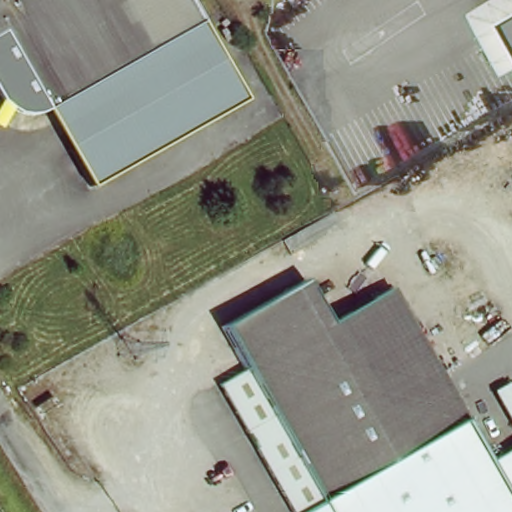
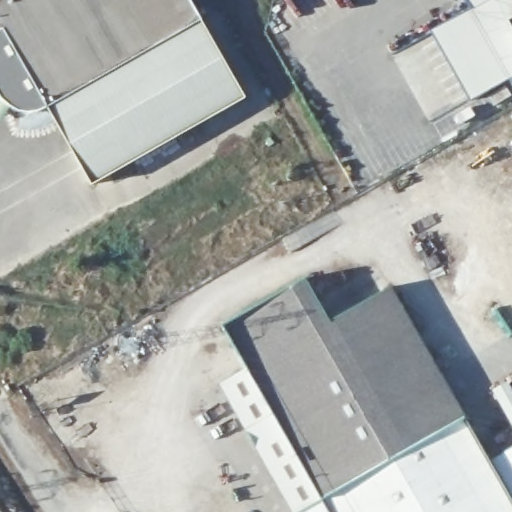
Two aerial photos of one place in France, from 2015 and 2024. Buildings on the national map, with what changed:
unchanged [(200,33),(160,55),(66,105),(56,111),(44,116),(36,119),(26,122),(18,121),(12,118),(4,112),(0,106),(0,0),(183,0),(200,33)]
new [(465,0),(486,0),(470,9),(465,0)]
unchanged [(465,12),(486,0),(512,0),(512,69),(504,76),(465,12)]
new [(470,101),(431,31),(465,12),(504,76),(512,69),(512,84),(508,77),(470,101)]
unchanged [(85,194),(44,116),(56,111),(66,105),(160,55),(200,33),(206,44),(243,111),(159,156),(110,181),(85,194)]
unchanged [(217,326),(300,277),(323,321),(386,285),(439,377),(463,420),(303,512),(290,512),(269,475),(264,466),(216,384),(229,376),(241,369),(217,326)]
unchanged [(483,455),(488,462),(512,448),(512,512),(303,512),(463,420),(483,455)]

